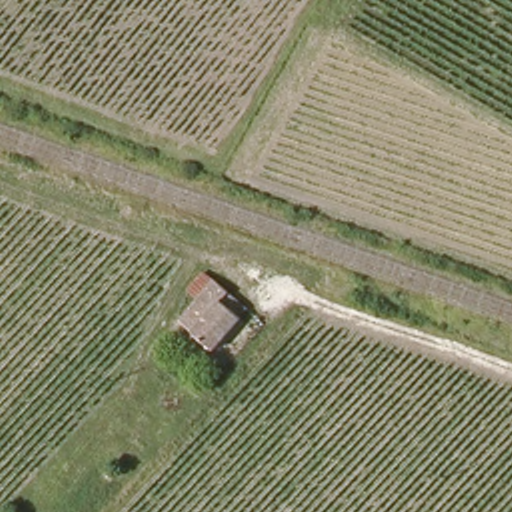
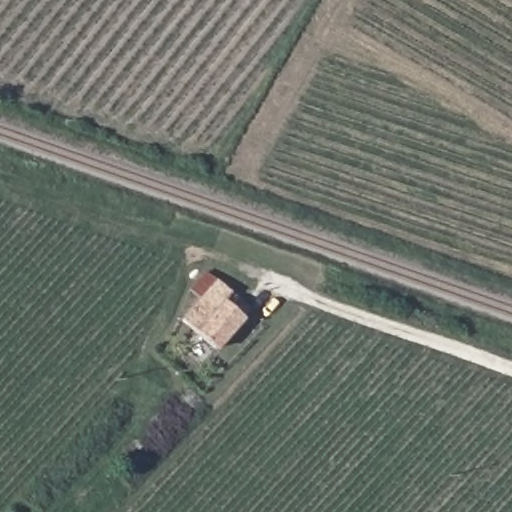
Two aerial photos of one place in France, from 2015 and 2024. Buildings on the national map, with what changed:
unchanged [(203,263),(249,300),(208,348),(177,323),(199,294),(186,284),(203,263)]

